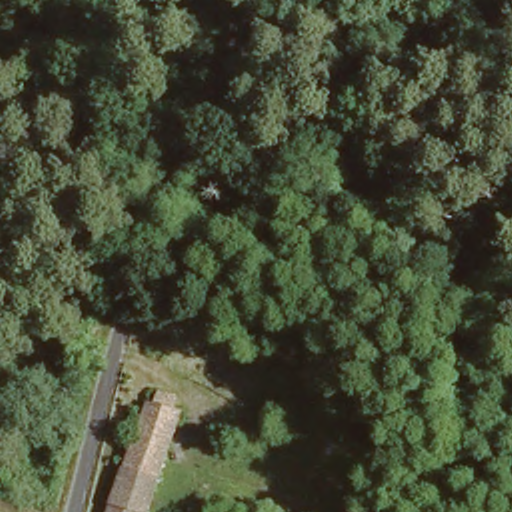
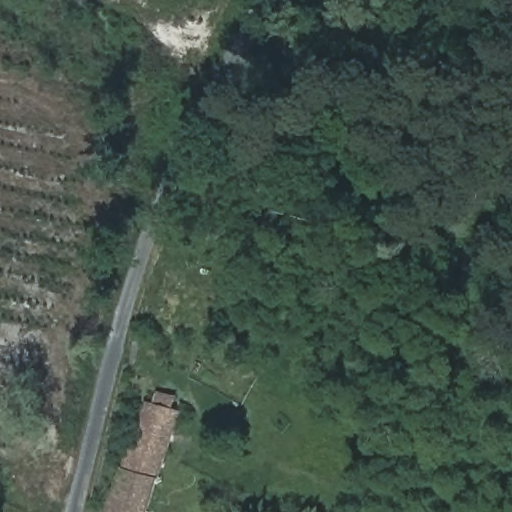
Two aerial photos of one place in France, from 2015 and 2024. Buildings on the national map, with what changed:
unchanged [(150,388),(155,391),(156,391),(161,379),(181,386),(176,396),(183,399),(142,512),(106,512),(150,388)]

